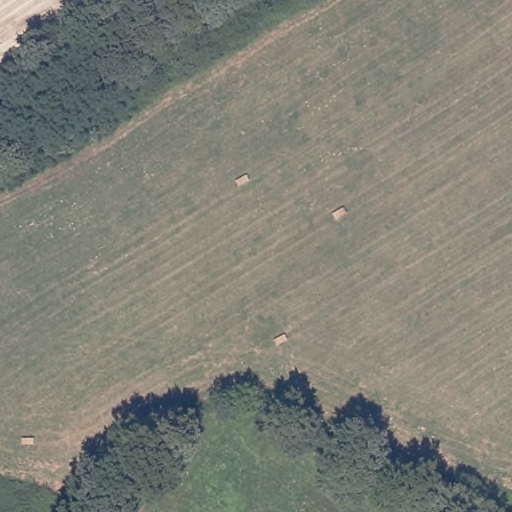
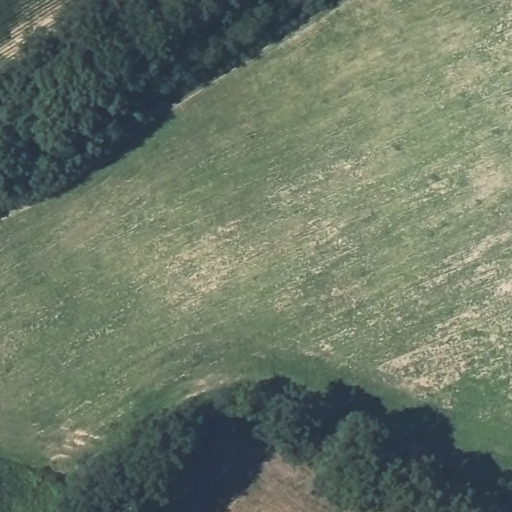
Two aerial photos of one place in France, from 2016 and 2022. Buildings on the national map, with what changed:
[]

